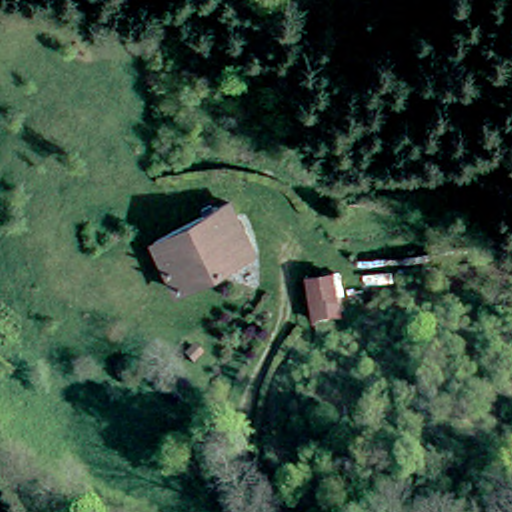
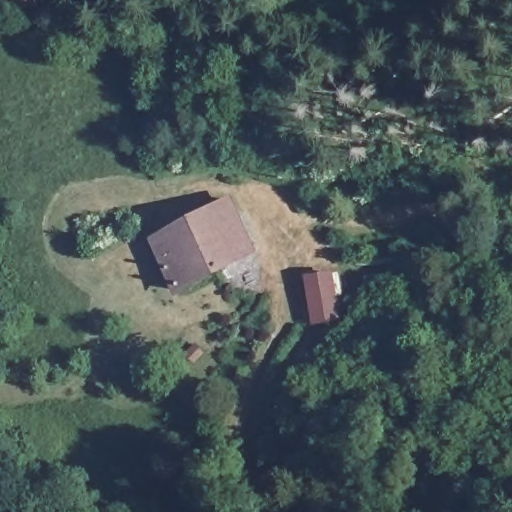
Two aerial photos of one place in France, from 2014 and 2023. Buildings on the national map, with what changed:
unchanged [(176,287),(150,240),(196,218),(228,202),(252,249),(176,287)]
unchanged [(342,311),(317,322),(301,280),(324,269),(342,311)]

